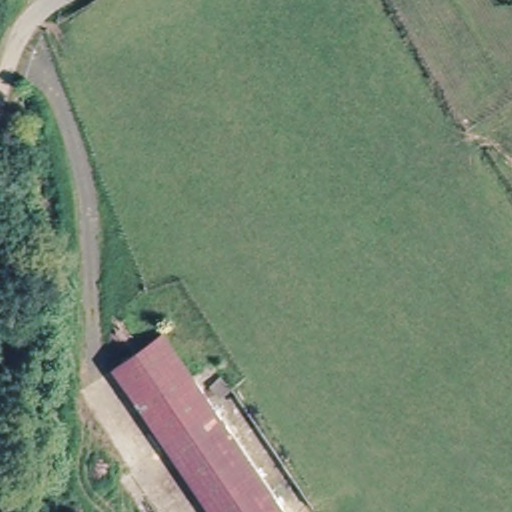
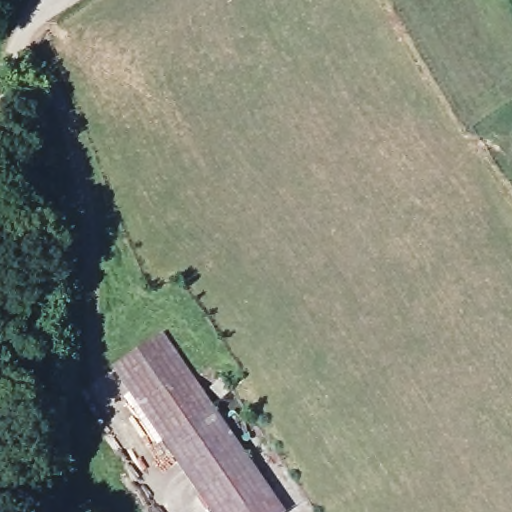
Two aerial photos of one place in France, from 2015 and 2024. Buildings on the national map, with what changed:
unchanged [(284,512),(215,512),(112,366),(160,332),(287,510),(284,512)]

